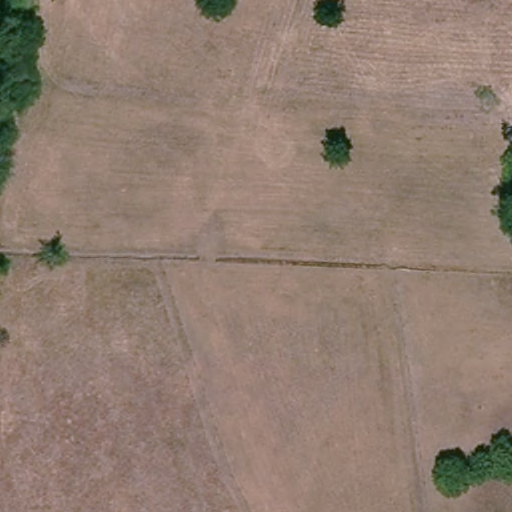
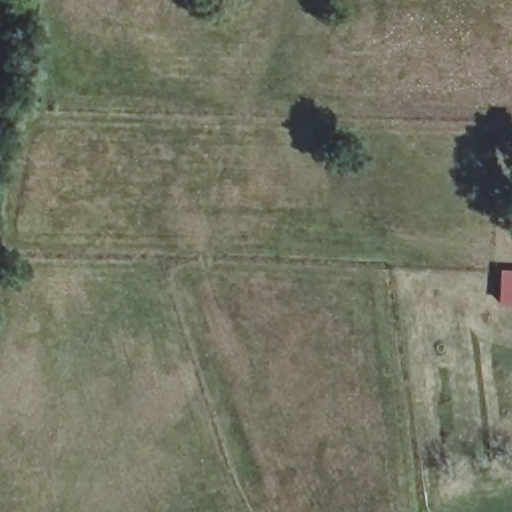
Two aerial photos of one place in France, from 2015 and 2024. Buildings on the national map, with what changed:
new [(512,271),(512,306),(499,305),(499,270),(512,271)]

